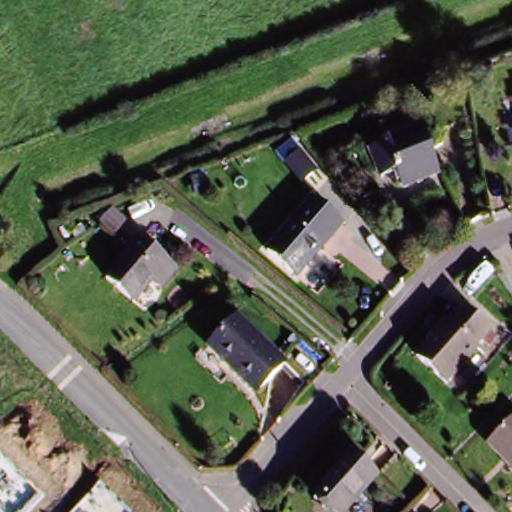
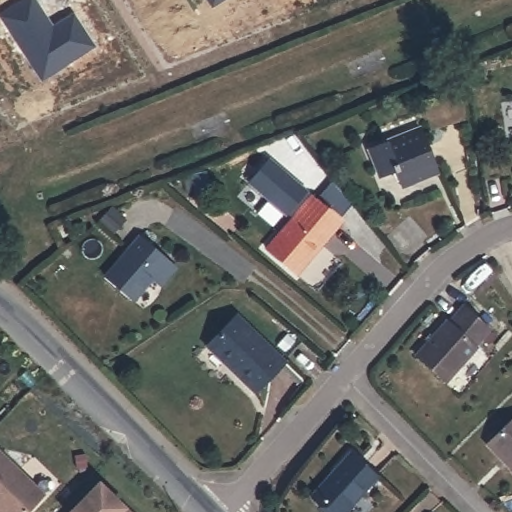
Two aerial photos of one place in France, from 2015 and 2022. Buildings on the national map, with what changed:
new [(34,0),(46,18),(42,20),(48,29),(72,12),(93,44),(40,78),(0,16),(0,12),(19,0),(34,0)]
new [(203,0),(216,0),(207,6),(203,0)]
unchanged [(388,162),(374,167),(372,161),(364,137),(399,124),(400,125),(414,120),(431,161),(415,167),(414,166),(397,173),(393,175),(388,162)]
unchanged [(342,221),(296,279),(259,253),(308,197),(342,221)]
unchanged [(173,266),(158,293),(148,282),(133,305),(100,278),(133,237),(173,266)]
unchanged [(446,322),(447,325),(462,310),(488,335),(474,350),(476,352),(441,386),(412,359),(446,322)]
unchanged [(284,364),(256,390),(209,338),(238,315),(284,364)]
unchanged [(512,421),(512,483),(504,475),(507,472),(483,449),(511,420),(512,421)]
unchanged [(23,512),(0,512),(0,453),(41,494),(23,512)]
unchanged [(370,476),(339,512),(330,512),(311,495),(344,454),(370,476)]
unchanged [(100,482),(132,512),(70,512),(100,482)]

